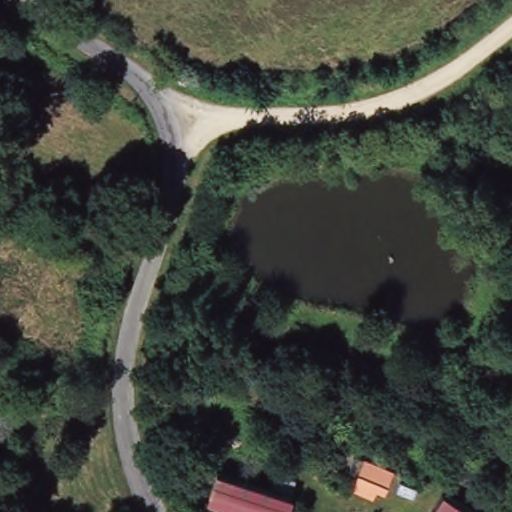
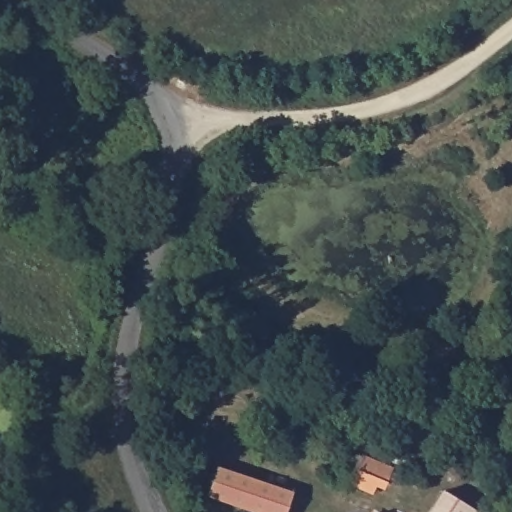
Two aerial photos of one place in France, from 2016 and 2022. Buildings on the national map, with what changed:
unchanged [(361,463),(391,478),(385,490),(356,474),(361,463)]
unchanged [(290,494),(283,512),(251,512),(206,496),(216,468),(290,494)]
unchanged [(473,512),(431,512),(443,493),(473,512)]

